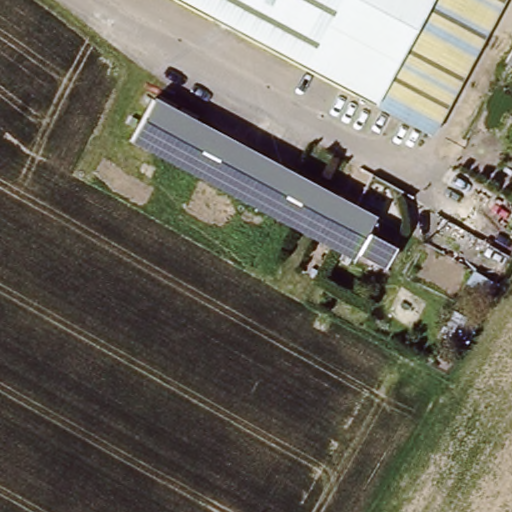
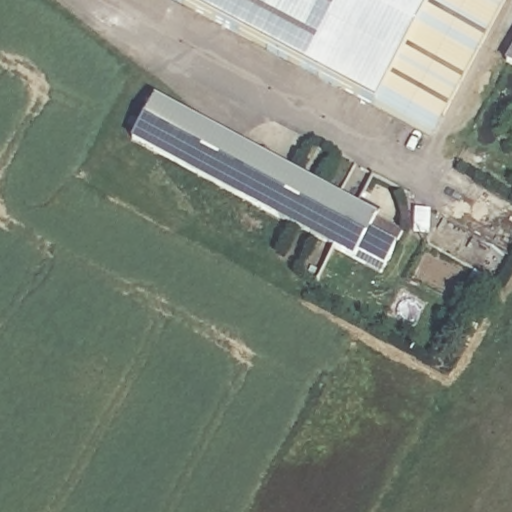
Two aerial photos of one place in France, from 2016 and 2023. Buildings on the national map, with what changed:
unchanged [(378,104),(179,0),(506,0),(438,130),(378,104)]
unchanged [(512,47),(512,68),(503,62),(512,47)]
unchanged [(291,177),(271,216),(129,139),(150,100),(291,177)]
unchanged [(331,250),(311,239),(291,228),(271,216),(291,177),(312,190),(332,200),(352,211),(331,250)]
unchanged [(352,211),(370,221),(363,232),(392,248),(379,268),(351,252),(347,259),(331,250),(352,211)]

